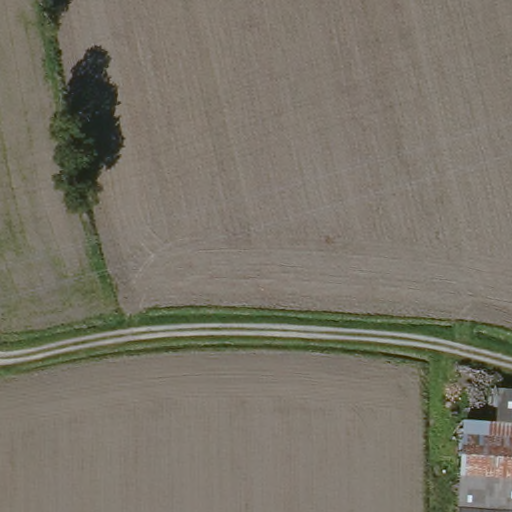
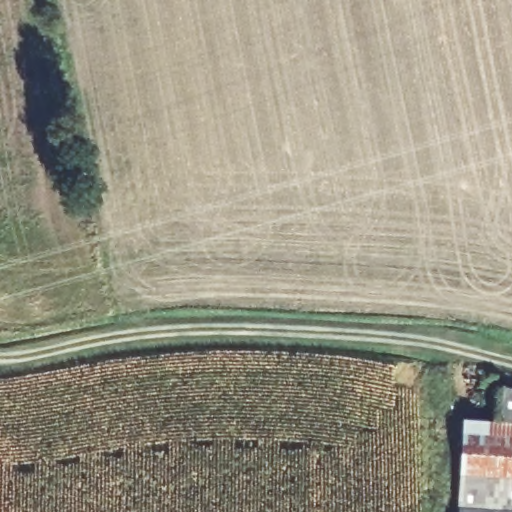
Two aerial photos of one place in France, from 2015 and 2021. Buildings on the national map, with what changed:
unchanged [(493,396),(512,397),(512,430),(491,428),(493,396)]
unchanged [(512,482),(457,478),(460,427),(491,428),(512,430),(512,482)]
unchanged [(512,482),(512,512),(454,512),(457,478),(512,482)]

